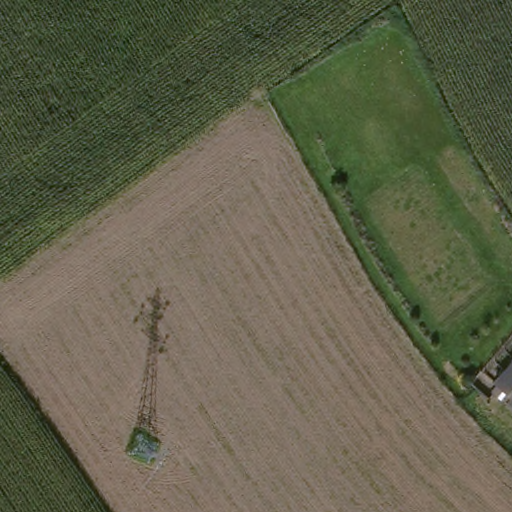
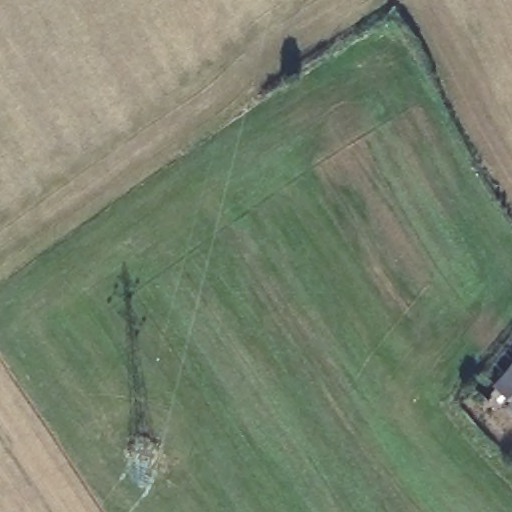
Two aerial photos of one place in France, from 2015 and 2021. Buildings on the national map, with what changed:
unchanged [(504,399),(503,398),(508,391),(502,386),(512,373),(512,405),(504,399)]

